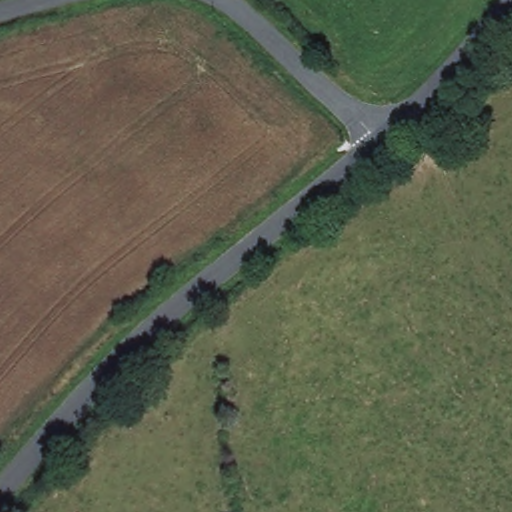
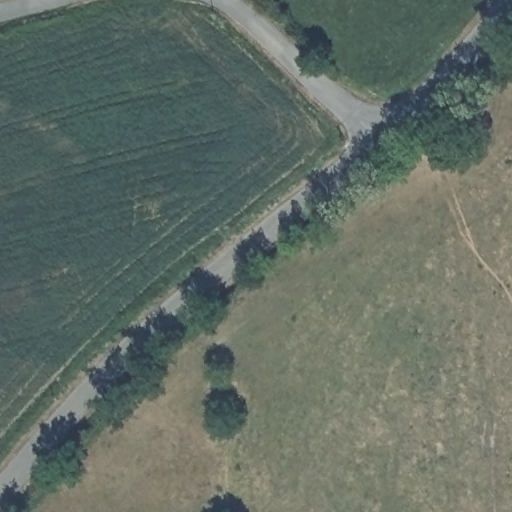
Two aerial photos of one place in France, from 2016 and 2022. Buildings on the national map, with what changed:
[]

